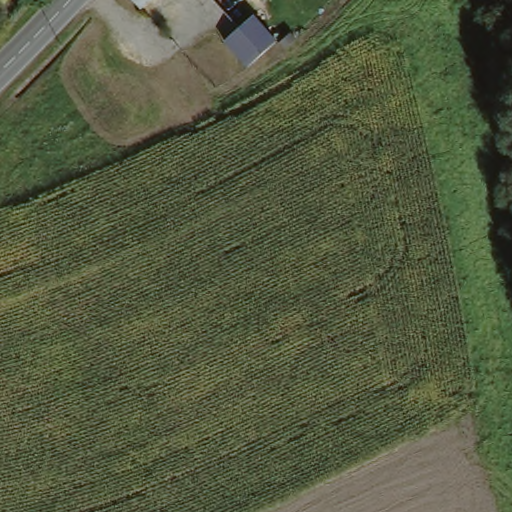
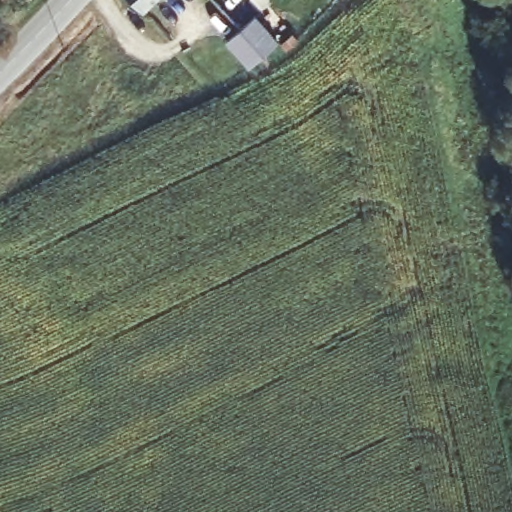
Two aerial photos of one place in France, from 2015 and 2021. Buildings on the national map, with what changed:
unchanged [(136,0),(150,0),(143,7),(136,0)]
unchanged [(225,41),(255,15),(276,39),(278,42),(248,66),(225,41)]

